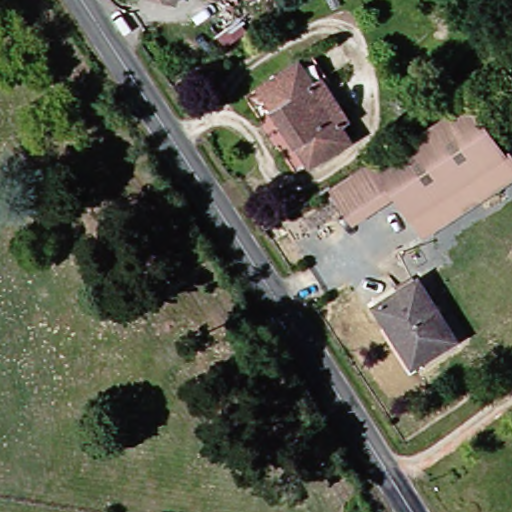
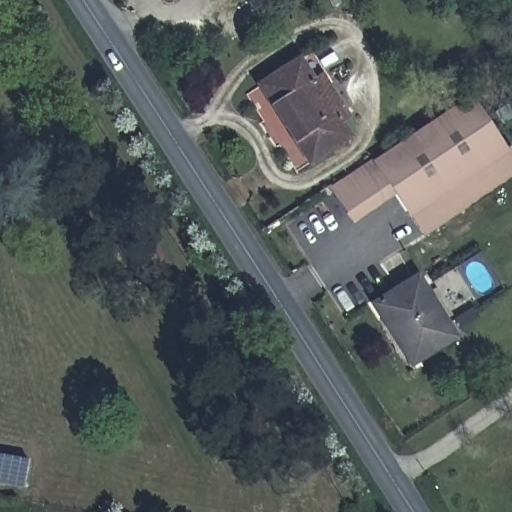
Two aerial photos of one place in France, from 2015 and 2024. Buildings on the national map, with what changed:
unchanged [(342,124),(352,139),(313,166),(262,89),(300,62),(315,54),(328,75),(322,78),(350,120),(342,124)]
unchanged [(504,154),(510,151),(512,154),(512,178),(424,233),(394,187),(377,162),(473,102),(504,154)]
unchanged [(372,156),(377,162),(394,187),(353,215),(333,183),(372,156)]
unchanged [(420,356),(396,318),(388,322),(378,304),(422,277),(456,335),(420,356)]
new [(29,462),(24,488),(0,483),(0,456),(29,462)]

